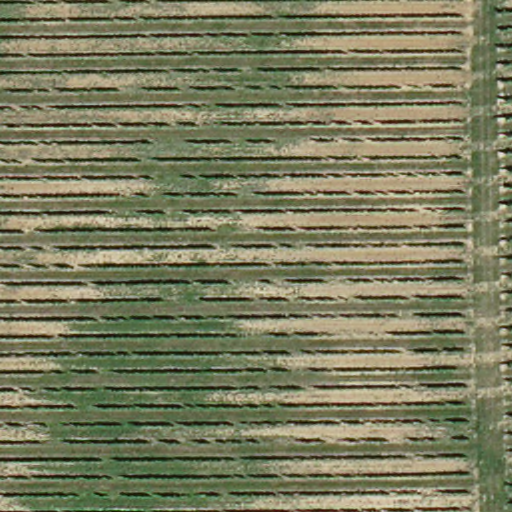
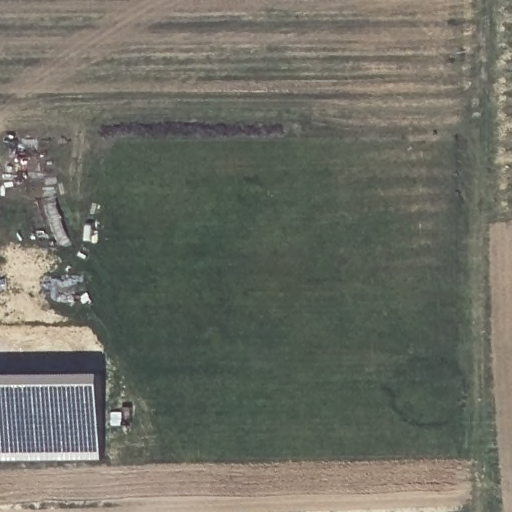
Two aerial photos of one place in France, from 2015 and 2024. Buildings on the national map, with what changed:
new [(104,458),(0,459),(0,374),(104,373),(104,458)]

